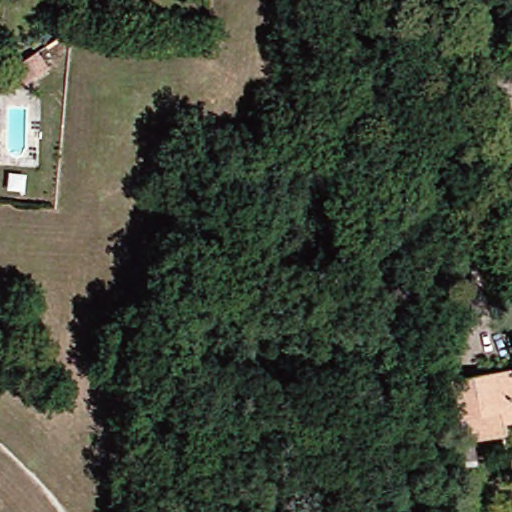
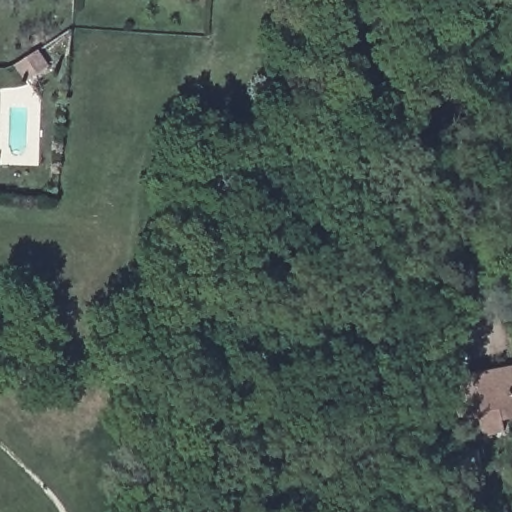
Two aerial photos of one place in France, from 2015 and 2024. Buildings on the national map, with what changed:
unchanged [(38,55),(40,53),(50,69),(30,82),(20,66),(38,55)]
unchanged [(467,438),(471,463),(460,465),(445,382),(500,371),(507,370),(512,393),(512,417),(495,420),(498,432),(467,438)]

